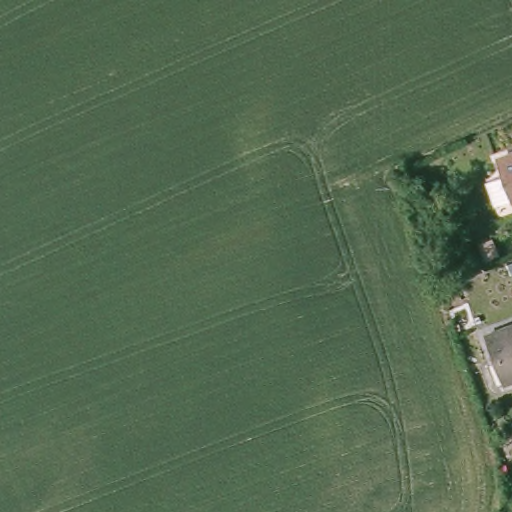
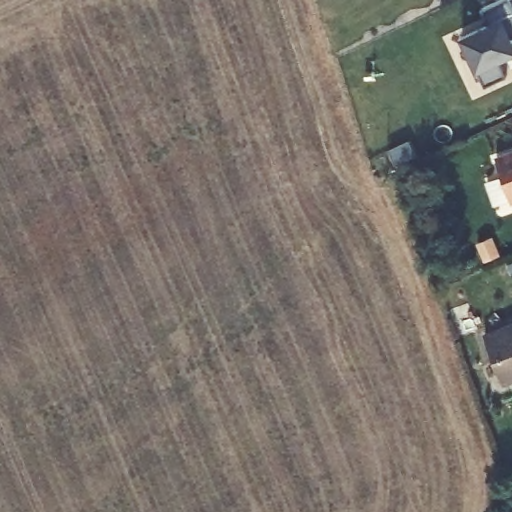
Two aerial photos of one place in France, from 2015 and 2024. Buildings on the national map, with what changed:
new [(460,35),(488,22),(482,10),(502,0),(512,0),(512,56),(500,61),(507,75),(485,86),(482,70),(477,71),(460,35)]
unchanged [(512,154),(512,201),(505,204),(492,161),(512,154)]
unchanged [(486,340),(512,331),(512,383),(502,387),(486,340)]

